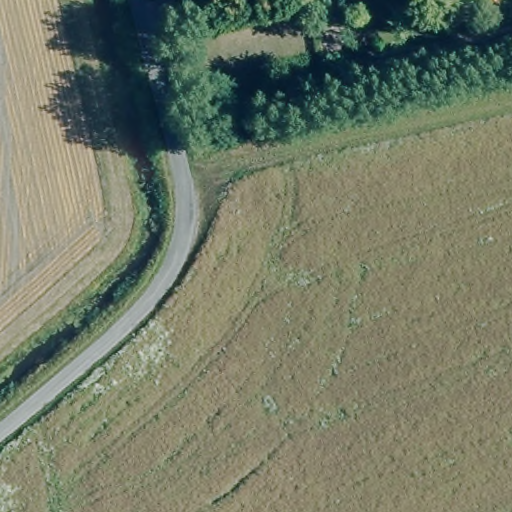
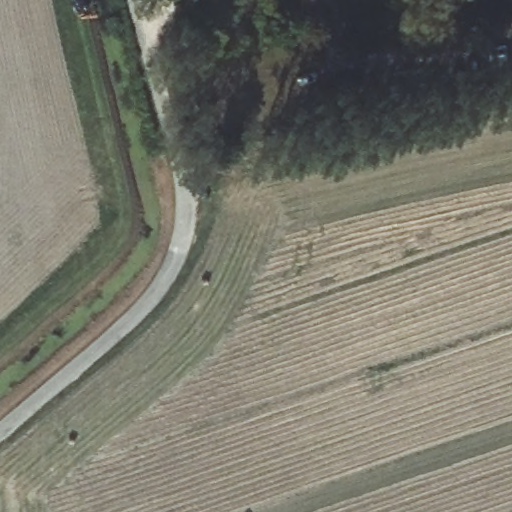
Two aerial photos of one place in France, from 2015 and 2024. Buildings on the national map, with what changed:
unchanged [(352,0),(366,0),(363,0),(371,40),(361,43),(352,0)]
unchanged [(396,62),(512,38),(512,74),(438,89),(435,90),(402,97),(396,62)]
unchanged [(296,54),(332,46),(337,67),(300,75),(296,54)]

